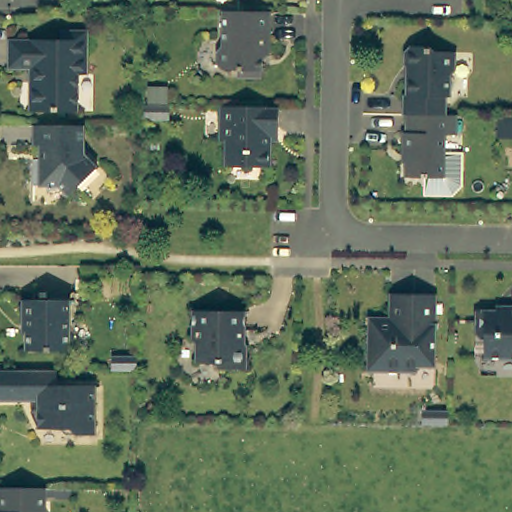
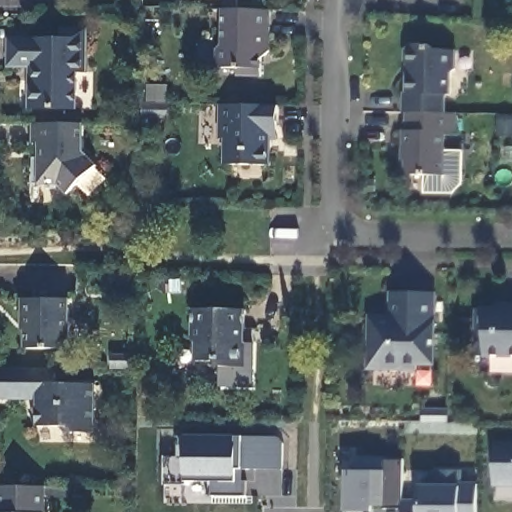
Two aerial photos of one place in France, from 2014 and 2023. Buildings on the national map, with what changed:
unchanged [(268,10),(267,48),(261,54),(257,62),(257,71),(258,74),(235,73),(235,66),(226,66),(218,64),(215,61),(216,45),(220,41),(221,9),(268,10)]
unchanged [(63,45),(63,35),(86,35),(85,75),(79,75),(77,113),(30,112),(31,85),(37,85),(36,72),(8,71),(9,44),(63,45)]
unchanged [(400,91),(404,92),(406,75),(406,65),(401,65),(402,44),(426,44),(431,48),(452,48),(452,67),(446,72),(446,94),(443,94),(442,114),(430,114),(403,113),(400,113),(400,91)]
unchanged [(163,102),(162,118),(139,117),(140,102),(163,102)]
unchanged [(280,145),(272,145),(271,170),(226,169),(226,141),(221,140),(221,109),(280,110),(280,134),(280,145)]
unchanged [(453,114),(453,132),(442,132),(441,175),(402,175),(402,147),(399,147),(400,130),(403,130),(403,113),(430,114),(442,114),(453,114)]
unchanged [(83,126),(82,152),(97,166),(69,195),(59,185),(48,190),(47,182),(32,184),(32,159),(40,159),(40,145),(33,145),(34,125),(83,126)]
unchanged [(393,317),(393,320),(411,321),(412,291),(438,292),(437,365),(420,364),(420,370),(370,370),(371,317),(393,317)]
unchanged [(22,319),(22,298),(69,299),(70,347),(28,348),(27,318),(22,319)]
unchanged [(480,310),(505,310),(505,305),(512,305),(512,356),(487,356),(487,338),(479,335),(480,310)]
unchanged [(243,325),(240,325),(239,331),(242,337),(246,341),(246,365),(218,365),(213,358),(197,358),(196,341),(191,336),(192,306),(243,307),(243,325)]
unchanged [(60,389),(98,388),(98,438),(82,438),(75,432),(45,431),(38,418),(44,417),(43,405),(1,403),(1,375),(60,375),(60,389)]
unchanged [(425,406),(452,407),(452,424),(425,423),(425,406)]
new [(282,470),(242,470),(242,482),(245,482),(244,495),(211,495),(211,482),(185,482),(185,485),(163,485),(164,456),(176,457),(175,437),(186,436),(242,437),(276,437),(283,443),(282,470)]
new [(512,488),(493,488),(495,443),(512,443),(512,488)]
new [(476,512),(401,512),(401,508),(386,507),(373,507),(373,511),(345,511),(346,471),(354,471),(354,459),(384,458),(383,460),(402,460),(401,500),(417,498),(417,485),(434,485),(435,472),(461,472),(460,483),(476,485),(476,512)]
unchanged [(2,488),(46,488),(46,512),(0,512),(0,488),(2,488)]

